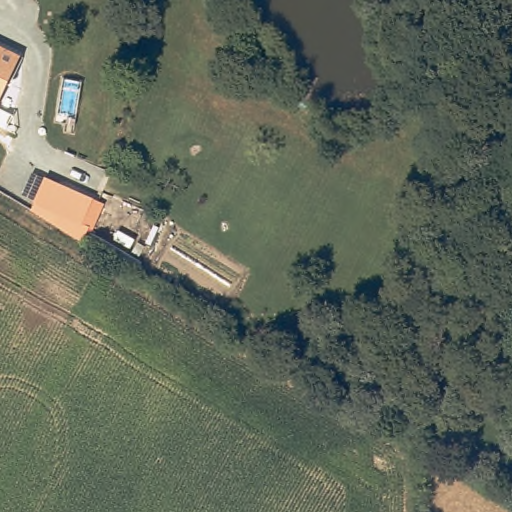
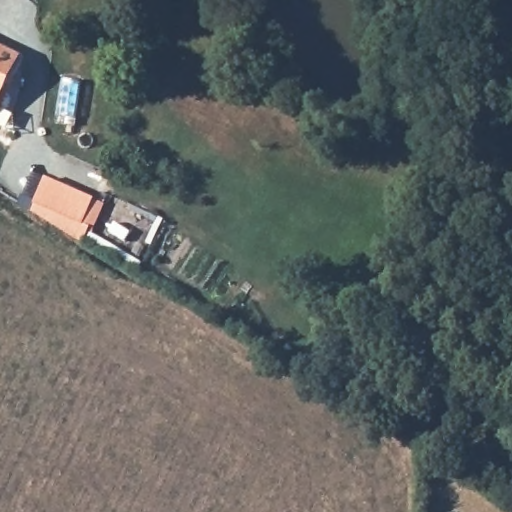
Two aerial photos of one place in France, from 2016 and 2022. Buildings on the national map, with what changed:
unchanged [(0,91),(0,48),(16,55),(0,91)]
unchanged [(37,179),(91,202),(80,226),(28,202),(37,179)]

